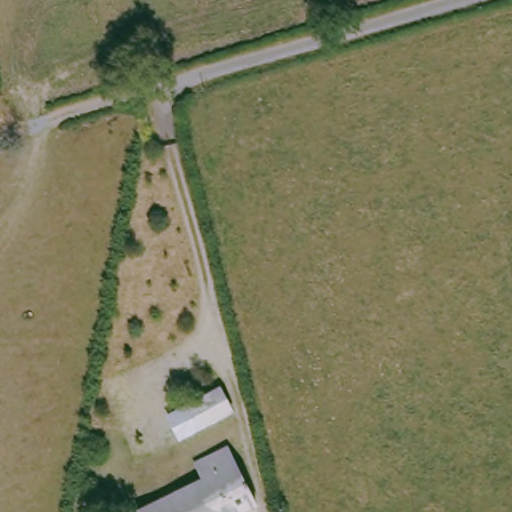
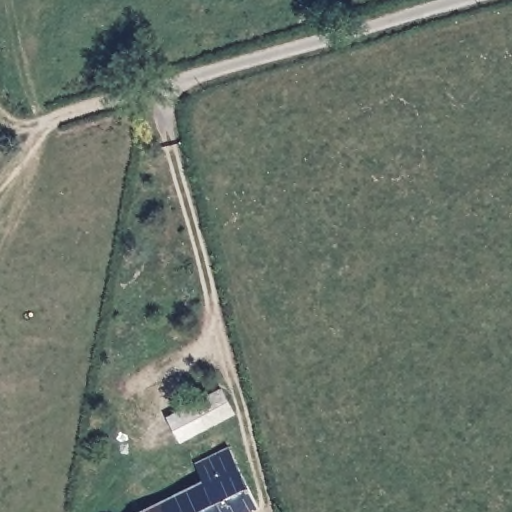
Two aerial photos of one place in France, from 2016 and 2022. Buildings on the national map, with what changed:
unchanged [(175,405),(193,398),(184,381),(209,370),(218,387),(220,386),(230,410),(186,429),(175,405)]
unchanged [(194,462),(219,449),(246,508),(238,512),(130,512),(191,481),(185,466),(194,462)]

